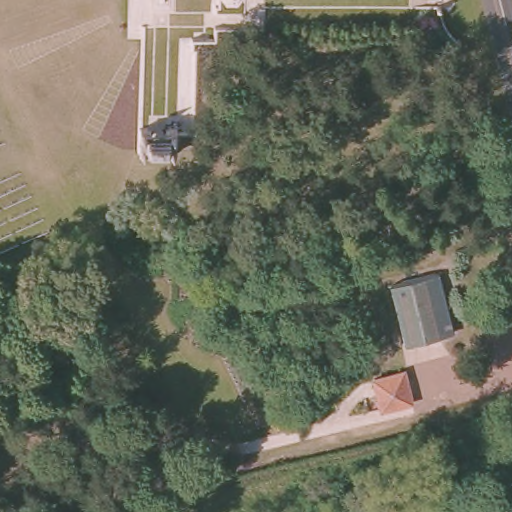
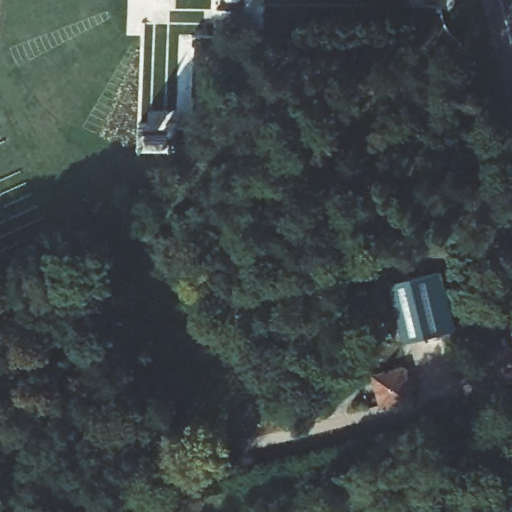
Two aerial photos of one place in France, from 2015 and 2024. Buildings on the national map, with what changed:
unchanged [(181,120),(179,144),(140,142),(141,118),(181,120)]
unchanged [(439,271),(454,330),(406,342),(391,284),(439,271)]
unchanged [(379,406),(371,375),(400,368),(408,398),(379,406)]

